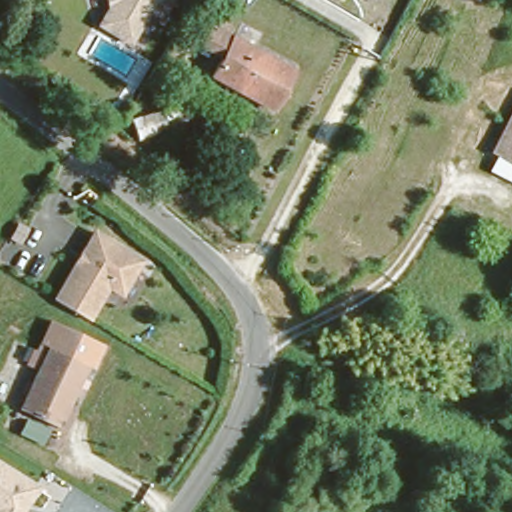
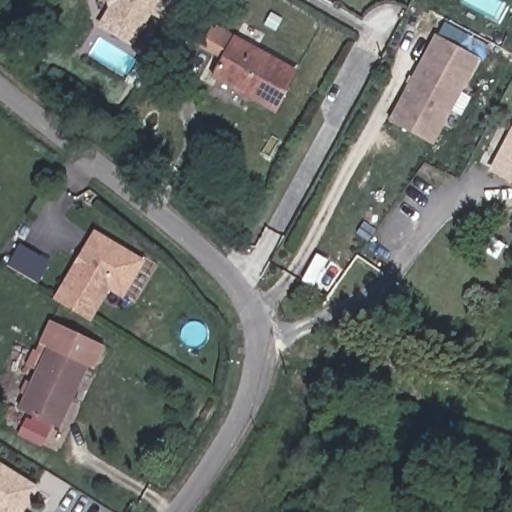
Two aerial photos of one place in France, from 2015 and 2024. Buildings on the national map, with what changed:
unchanged [(165,14),(152,6),(132,39),(102,21),(113,4),(112,0),(174,0),(165,14)]
unchanged [(205,42),(215,23),(296,67),(275,105),(214,71),(224,53),(205,42)]
new [(433,146),(388,118),(436,33),(482,59),(433,146)]
unchanged [(512,119),(512,179),(489,166),(497,152),(495,150),(512,119)]
unchanged [(59,301),(99,234),(146,262),(126,297),(112,289),(92,322),(59,301)]
unchanged [(51,422),(19,407),(50,344),(42,340),(52,318),(99,340),(74,392),(58,425),(51,422)]
unchanged [(0,512),(0,467),(37,488),(23,512),(0,512)]

